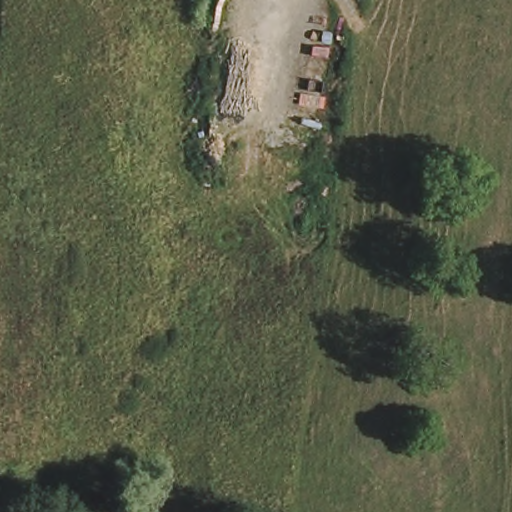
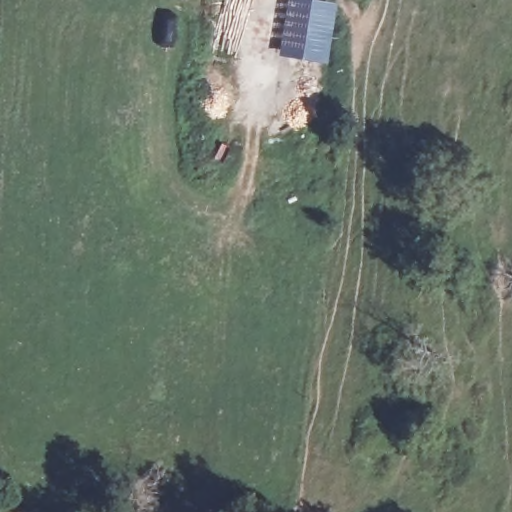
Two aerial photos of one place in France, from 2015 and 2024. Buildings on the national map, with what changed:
new [(286,6),(290,6),(293,0),(313,0),(336,3),(327,62),(278,55),(286,6)]

